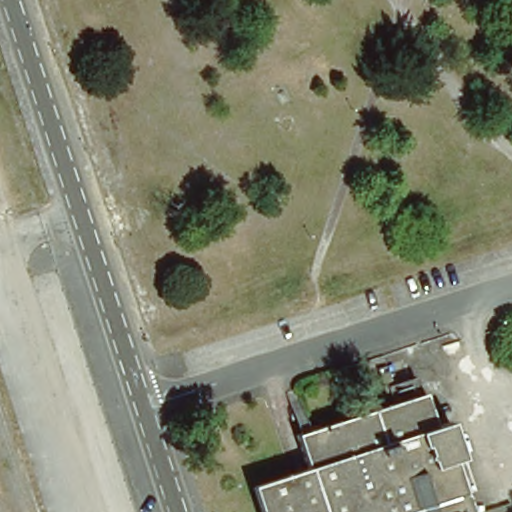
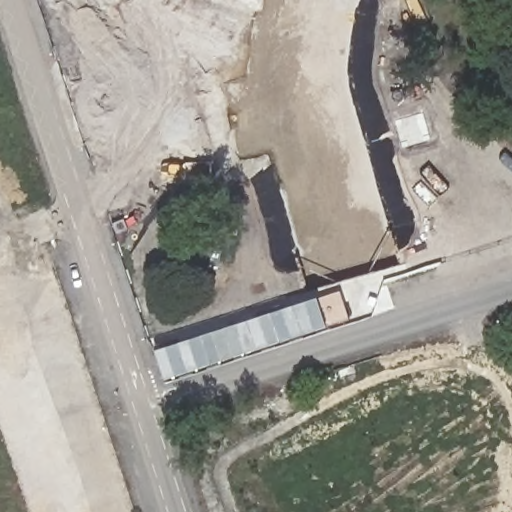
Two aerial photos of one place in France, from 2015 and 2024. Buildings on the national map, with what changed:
demolished [(249,485),(305,467),(294,433),(422,392),(423,396),(416,397),(433,512),(258,512),(249,485)]
demolished [(416,397),(423,396),(434,426),(447,421),(460,457),(452,460),(470,512),(433,512),(416,397)]

